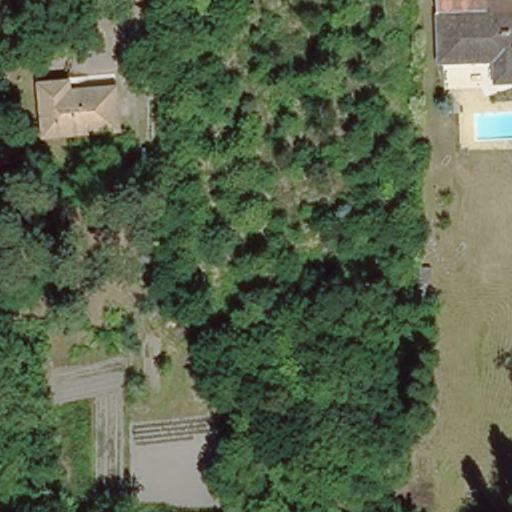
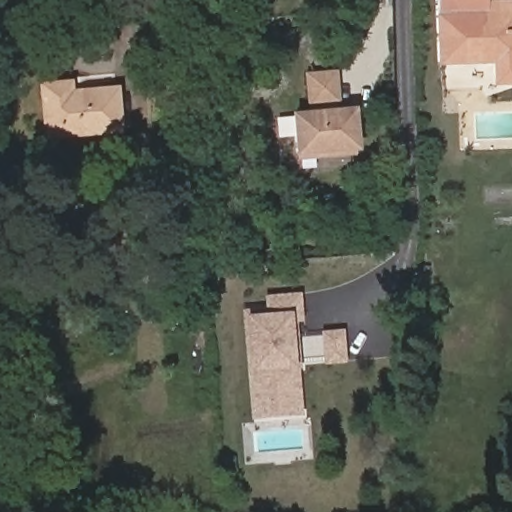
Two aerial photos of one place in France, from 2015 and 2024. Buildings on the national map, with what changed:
unchanged [(512,4),(512,13),(441,17),(440,0),(489,0),(489,6),(512,4)]
unchanged [(495,62),(444,65),(441,17),(512,13),(512,84),(496,85),(495,62)]
new [(337,72),(339,100),(312,102),(311,74),(337,72)]
unchanged [(42,85),(71,82),(71,93),(115,89),(120,129),(47,136),(42,85)]
new [(305,157),(304,150),(301,114),(359,108),(362,145),(363,152),(305,157)]
new [(246,312),(273,310),(270,297),(304,293),(306,323),(298,324),(306,417),(254,422),(246,312)]
new [(325,333),(346,332),(350,366),(328,366),(325,333)]

